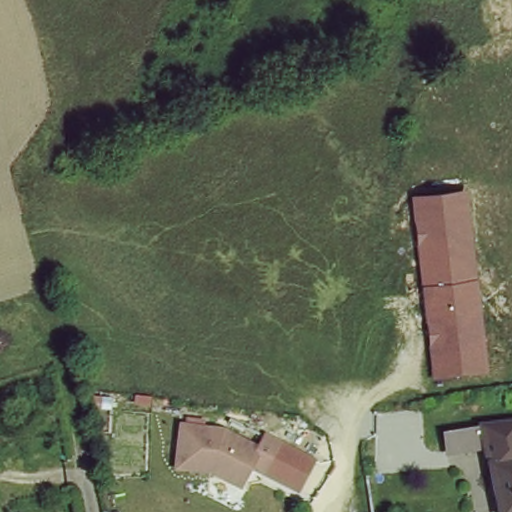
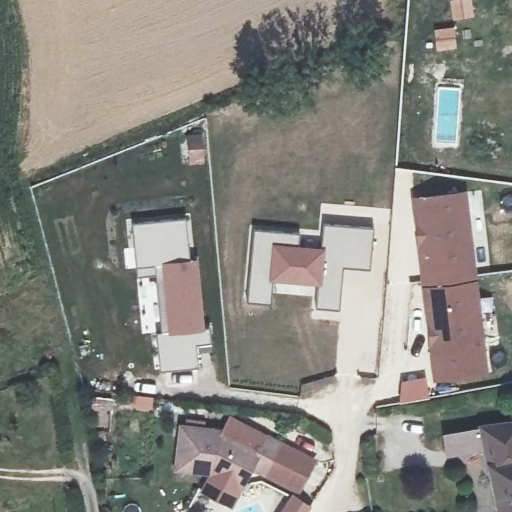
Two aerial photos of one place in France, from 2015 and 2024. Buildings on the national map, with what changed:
unchanged [(433,380),(412,198),(467,191),(488,373),(433,380)]
new [(137,275),(132,223),(184,217),(189,259),(196,259),(203,326),(208,326),(210,342),(196,343),(197,366),(160,369),(156,332),(161,331),(155,274),(137,275)]
new [(250,225),(301,232),(301,242),(319,244),(321,222),(374,227),(372,271),(344,269),(342,311),(313,310),(313,288),(273,285),(272,303),(246,301),(250,225)]
unchanged [(297,495),(251,470),(241,487),(215,473),(173,466),(175,421),(241,428),(240,435),(263,441),(267,430),(315,457),(297,495)]
unchanged [(448,451),(445,434),(481,428),(512,425),(512,512),(501,512),(487,445),(448,451)]

